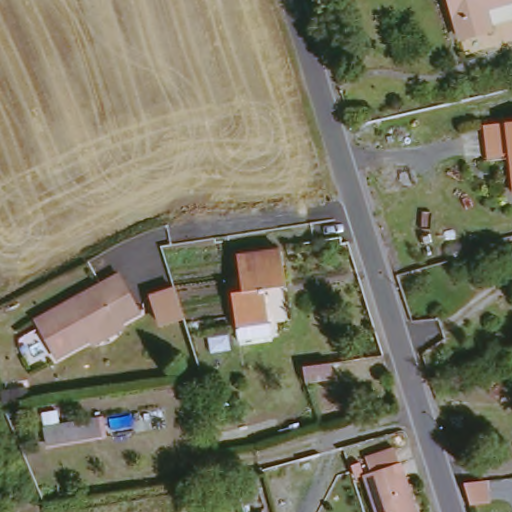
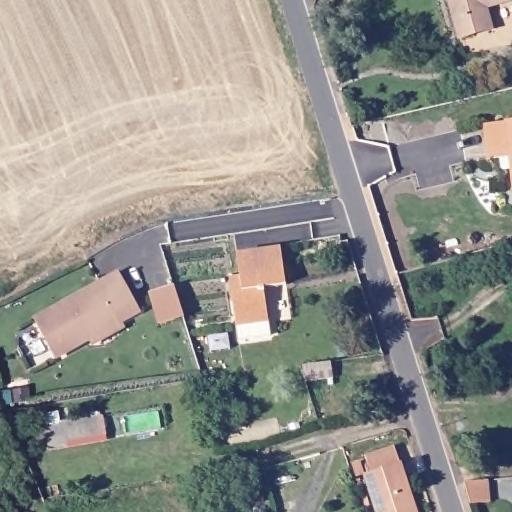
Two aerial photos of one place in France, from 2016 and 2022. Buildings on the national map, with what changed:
unchanged [(512,4),(492,10),(499,32),(467,43),(452,0),(512,0),(512,4)]
unchanged [(490,165),(488,127),(511,124),(512,124),(512,164),(512,160),(490,165)]
unchanged [(242,343),(240,325),(237,292),(235,277),(246,275),(244,256),(290,250),(295,287),(270,290),(274,321),(275,340),(242,343)]
unchanged [(134,325),(115,335),(112,330),(80,345),(84,350),(50,366),(29,328),(112,287),(134,325)]
unchanged [(183,324),(161,331),(152,303),(175,296),(183,324)]
unchanged [(313,389),(344,384),(345,401),(316,405),(313,389)]
unchanged [(405,470),(422,512),(382,512),(367,475),(369,472),(369,468),(395,457),(402,470),(405,470)]
unchanged [(497,481),(475,485),(469,463),(492,460),(497,481)]

